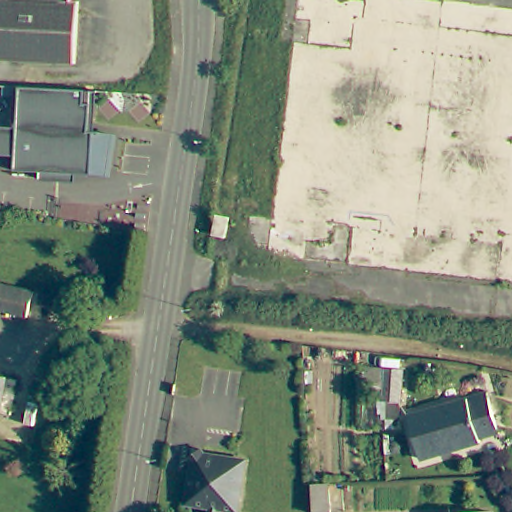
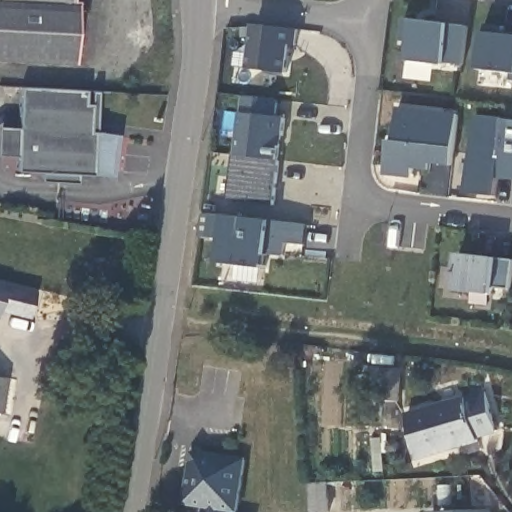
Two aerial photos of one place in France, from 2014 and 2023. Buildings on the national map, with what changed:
unchanged [(82,3),(80,64),(0,60),(0,0),(75,0),(75,4),(82,3)]
new [(467,66),(410,62),(412,43),(402,42),(405,20),(416,20),(452,25),(470,27),(467,66)]
unchanged [(487,32),(487,25),(507,27),(507,35),(512,36),(512,74),(483,70),(487,32)]
new [(300,47),(292,46),(291,75),(250,70),(254,26),(300,32),(300,47)]
unchanged [(15,127),(17,87),(76,89),(83,90),(82,102),(89,103),(87,131),(99,131),(99,134),(112,136),(108,168),(91,167),(91,175),(65,173),(65,180),(37,179),(38,172),(12,171),(13,156),(0,156),(0,127),(15,127)]
new [(243,115),(245,115),(246,99),(282,102),(281,118),(289,119),(286,147),(283,147),(282,162),(239,156),(243,115)]
new [(435,164),(433,171),(417,169),(416,179),(388,177),(391,141),(397,141),(401,109),(460,115),(454,166),(435,164)]
new [(498,198),(471,194),(478,117),(512,120),(512,180),(501,179),(498,198)]
new [(277,209),(234,205),(239,156),(282,162),(277,209)]
new [(312,225),(310,246),(290,244),(288,257),(272,257),(270,268),(223,264),(227,241),(212,237),(215,214),(312,225)]
new [(498,296),(458,291),(461,254),(512,260),(512,289),(500,287),(498,296)]
unchanged [(37,292),(30,317),(0,310),(0,283),(37,292)]
unchanged [(398,371),(400,405),(381,405),(381,393),(361,393),(360,372),(381,372),(383,372),(398,371)]
unchanged [(9,377),(2,412),(0,412),(0,376),(9,377)]
unchanged [(489,400),(500,440),(481,445),(481,448),(422,462),(411,418),(489,400)]
unchanged [(191,466),(186,460),(197,451),(203,457),(244,464),(235,512),(218,512),(207,512),(207,511),(184,507),(191,466)]
unchanged [(328,484),(329,512),(313,512),(312,485),(328,484)]

